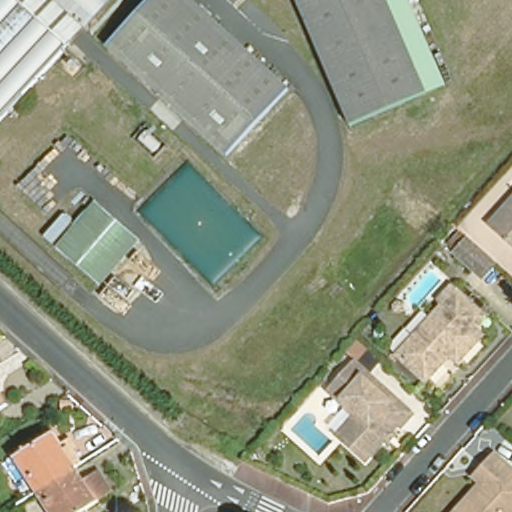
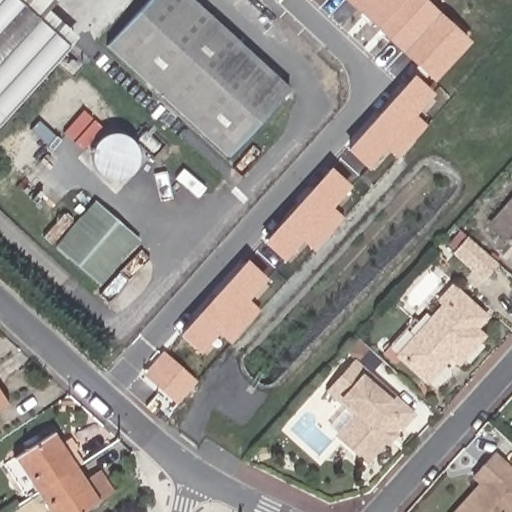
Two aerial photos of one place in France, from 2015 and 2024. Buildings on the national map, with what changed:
unchanged [(0,114),(0,0),(6,0),(60,49),(0,114)]
unchanged [(6,0),(45,0),(77,30),(60,49),(6,0)]
unchanged [(105,0),(77,30),(45,0),(104,0),(105,0)]
unchanged [(146,0),(197,0),(290,85),(224,158),(102,48),(146,0)]
demolished [(309,0),(394,0),(432,88),(370,115),(361,119),(352,98),(309,0)]
new [(344,0),(423,0),(466,40),(462,44),(465,48),(433,82),(376,29),(344,0)]
new [(415,116),(427,127),(397,159),(384,149),(366,169),(345,150),(413,76),(434,94),(415,116)]
new [(109,134),(117,134),(124,135),(130,139),(135,145),(137,152),(138,159),(137,167),(132,173),(127,178),(120,181),(112,181),(105,179),(99,176),(94,170),(91,163),(91,155),(92,148),(96,142),(102,137),(109,134)]
new [(282,262),(262,242),(330,168),(351,187),(332,207),(343,218),(313,252),(301,241),(282,262)]
unchanged [(487,223),(512,195),(512,246),(487,223)]
unchanged [(98,293),(52,254),(92,208),(137,246),(98,293)]
unchanged [(499,263),(486,278),(457,253),(471,238),(499,263)]
new [(199,354),(180,337),(248,261),(267,279),(248,299),(261,310),(230,344),(217,333),(199,354)]
unchanged [(455,361),(447,353),(423,379),(395,353),(441,302),(436,298),(448,284),(472,306),(482,314),(471,326),(480,334),(455,361)]
new [(164,351),(197,381),(176,404),(142,375),(164,351)]
unchanged [(385,441),(382,438),(362,459),(340,438),(335,434),(353,413),(326,389),(352,362),(409,413),(398,425),(395,423),(388,430),(391,433),(385,441)]
unchanged [(0,408),(0,399),(5,406),(0,408)]
unchanged [(33,497),(10,462),(45,439),(68,474),(33,497)]
unchanged [(508,512),(450,512),(482,478),(472,470),(478,463),(491,450),(512,469),(512,508),(508,512)]
unchanged [(106,500),(91,509),(86,512),(43,512),(33,497),(68,474),(77,489),(92,479),(106,500)]

